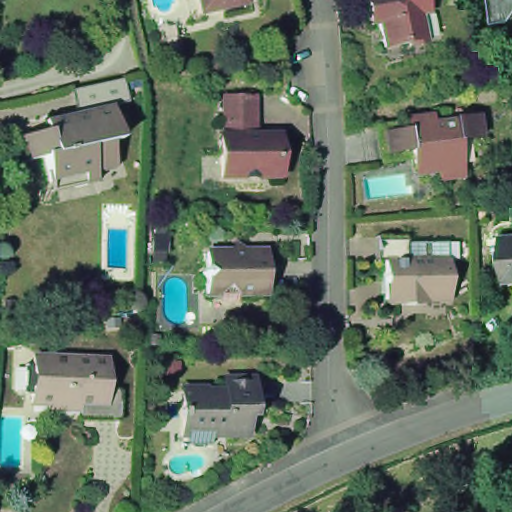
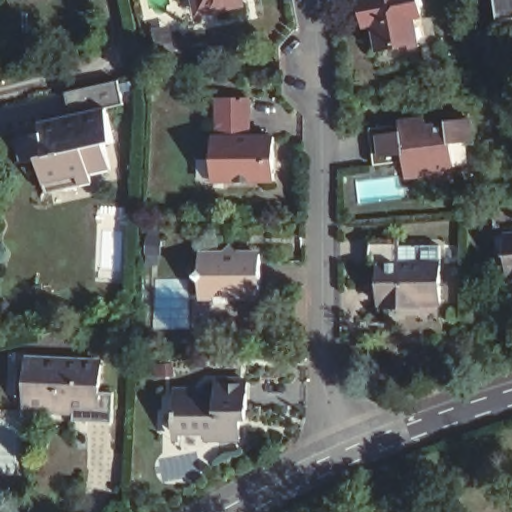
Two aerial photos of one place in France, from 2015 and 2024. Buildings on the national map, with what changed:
unchanged [(203,0),(243,0),(205,8),(203,0)]
unchanged [(415,19),(419,39),(402,42),(402,46),(378,51),(371,15),(363,16),(361,0),(419,0),(422,17),(415,19)]
unchanged [(499,20),(496,0),(512,0),(512,19),(499,20)]
unchanged [(124,85),(125,86),(130,109),(112,113),(79,120),(73,97),(124,85)]
unchanged [(249,98),(250,137),(219,137),(218,98),(249,98)]
unchanged [(120,147),(111,149),(117,174),(51,189),(45,164),(30,167),(25,144),(67,134),(65,123),(79,120),(112,113),(120,147)]
unchanged [(427,114),(428,122),(447,120),(447,116),(470,113),(473,136),(452,138),(457,174),(432,177),(430,166),(407,168),(405,156),(376,160),(372,131),(402,127),(400,118),(427,114)]
unchanged [(275,137),(275,180),(229,181),(215,166),(214,138),(219,137),(250,137),(275,137)]
unchanged [(512,230),(512,270),(510,270),(507,230),(512,230)]
unchanged [(261,245),(262,286),(232,286),(215,286),(202,286),(201,271),(196,266),(201,261),(201,245),(261,245)]
unchanged [(418,302),(418,307),(385,307),(385,302),(380,302),(380,263),(400,263),(400,246),(442,245),(442,262),(442,302),(418,302)]
unchanged [(113,418),(82,416),(83,408),(75,408),(43,406),(43,400),(27,400),(27,384),(28,370),(28,354),(57,356),(65,363),(72,357),(102,358),(100,387),(115,388),(113,418)]
unchanged [(194,394),(200,389),(205,394),(218,394),(218,380),(248,381),(247,418),(242,418),(242,437),(243,437),(243,438),(206,438),(206,435),(178,435),(178,420),(176,420),(176,412),(178,412),(178,394),(194,394)]

